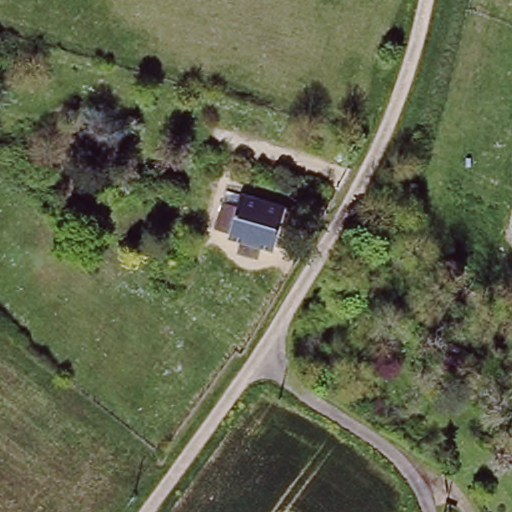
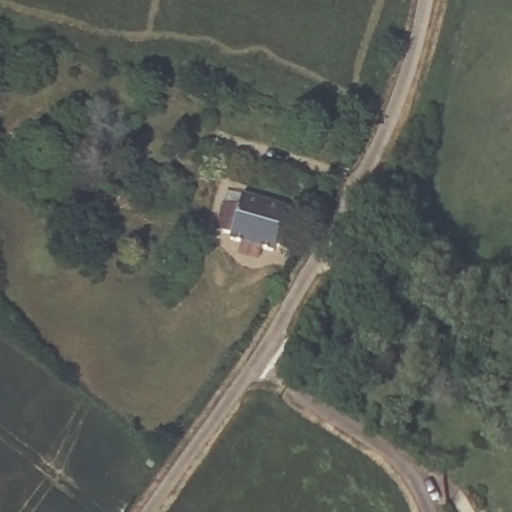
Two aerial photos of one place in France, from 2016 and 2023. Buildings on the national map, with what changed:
unchanged [(228,185),(300,204),(289,245),(278,242),(277,250),(262,245),(260,251),(240,246),(242,240),(230,237),(232,230),(217,226),(228,185)]

